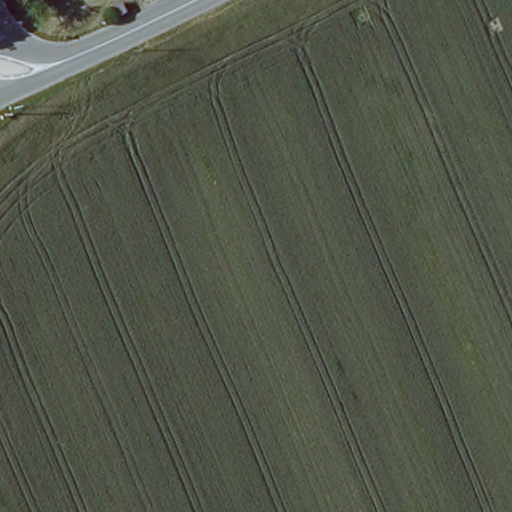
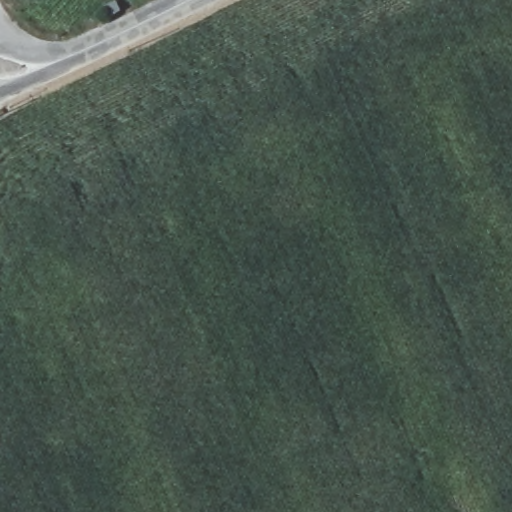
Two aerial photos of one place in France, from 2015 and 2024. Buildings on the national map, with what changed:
unchanged [(109,19),(103,7),(119,1),(124,12),(109,19)]

